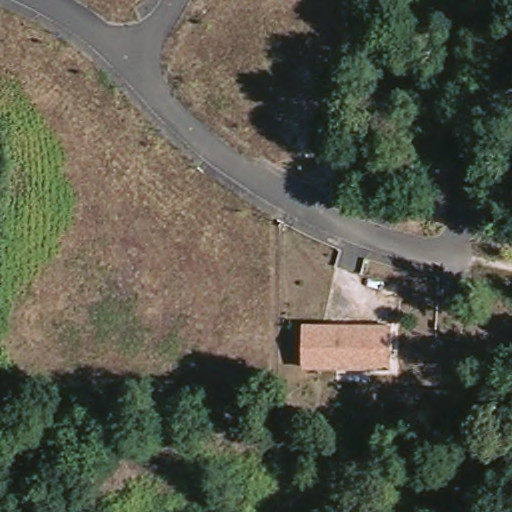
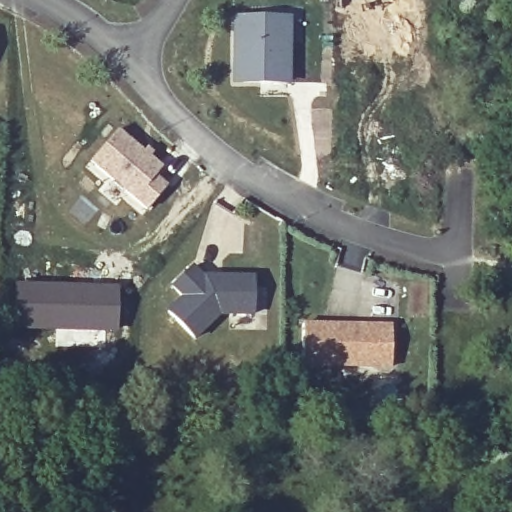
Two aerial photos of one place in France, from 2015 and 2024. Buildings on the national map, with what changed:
new [(236,16),(289,15),(288,94),(261,94),(261,79),(235,79),(236,16)]
new [(120,131),(164,168),(157,177),(169,187),(149,210),(93,161),(120,131)]
new [(173,284),(193,265),(204,275),(205,274),(218,274),(227,275),(254,274),(253,312),(220,312),(195,336),(169,309),(184,295),(173,284)]
new [(12,283),(119,283),(119,332),(11,331),(12,283)]
unchanged [(305,321),(394,323),(395,368),(305,367),(305,321)]

